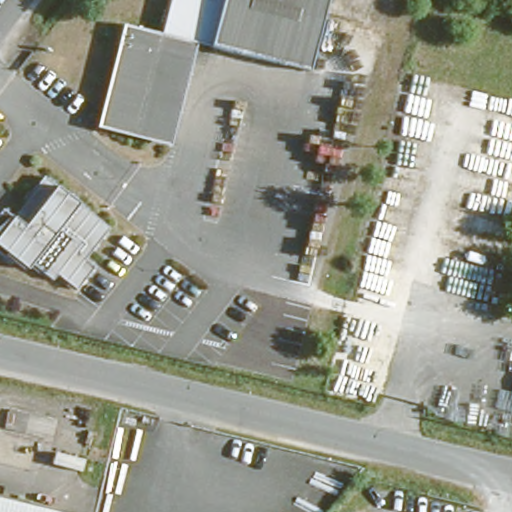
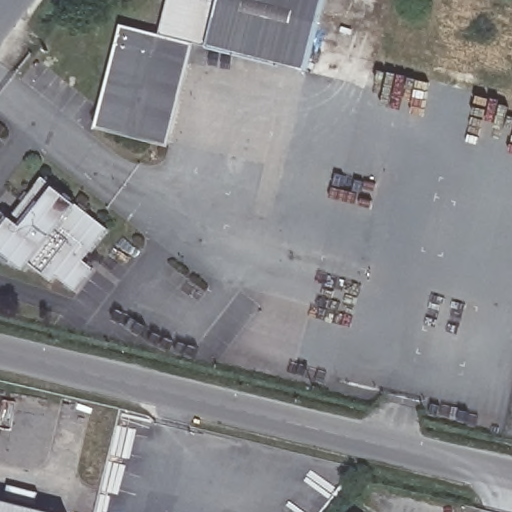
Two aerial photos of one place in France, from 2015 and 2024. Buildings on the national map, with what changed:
unchanged [(99,114),(116,45),(111,44),(118,23),(159,34),(168,0),(328,0),(310,72),(190,42),(186,62),(172,59),(160,112),(153,137),(97,123),(99,114)]
unchanged [(94,272),(75,293),(57,277),(52,282),(31,263),(26,269),(15,259),(10,264),(0,255),(0,214),(5,208),(21,222),(35,207),(28,202),(50,178),(113,234),(86,263),(94,272)]
unchanged [(0,497),(58,512),(0,512),(0,497)]
unchanged [(360,511),(362,512),(359,512),(360,511)]

